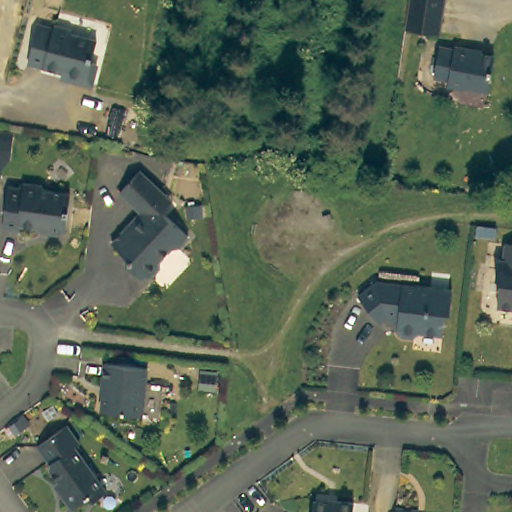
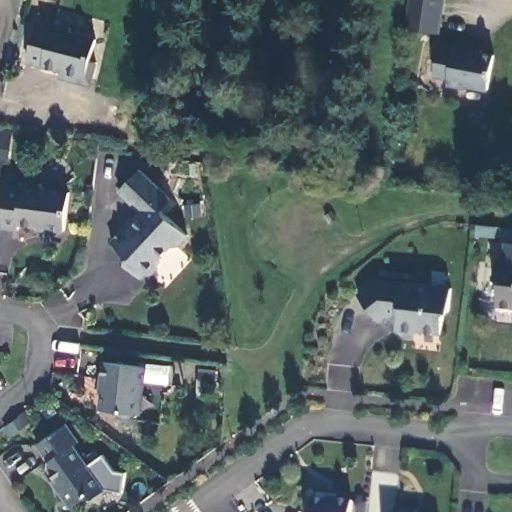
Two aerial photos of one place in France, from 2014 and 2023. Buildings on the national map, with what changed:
unchanged [(438,35),(405,31),(409,0),(444,0),(438,35)]
unchanged [(39,20),(54,26),(55,22),(71,27),(73,31),(97,38),(91,60),(97,62),(91,82),(69,77),(70,72),(28,59),(39,20)]
unchanged [(437,45),(451,48),(452,45),(479,50),(478,52),(492,55),(488,75),(485,89),(463,85),(462,87),(445,83),(446,77),(431,74),(432,67),(437,45)]
unchanged [(150,212),(182,241),(173,252),(165,252),(154,262),(156,270),(147,281),(139,279),(136,281),(124,270),(123,262),(108,247),(123,230),(131,228),(139,220),(114,198),(135,177),(161,201),(150,212)]
unchanged [(54,235),(42,233),(35,228),(14,226),(13,232),(0,230),(0,198),(1,189),(17,190),(17,185),(33,187),(38,192),(62,195),(59,230),(54,235)]
unchanged [(501,285),(496,277),(498,258),(504,258),(506,242),(512,242),(512,308),(498,307),(501,285)]
unchanged [(441,317),(440,332),(418,329),(413,334),(400,332),(395,327),(396,323),(391,317),(383,317),(378,321),(357,293),(374,278),(451,287),(448,311),(441,317)]
unchanged [(99,381),(97,381),(100,357),(142,362),(137,410),(96,406),(99,381)]
unchanged [(70,447),(101,492),(90,500),(80,500),(69,508),(58,493),(56,484),(47,472),(45,462),(33,445),(61,425),(74,443),(70,447)]
unchanged [(309,512),(310,501),(334,503),(334,501),(350,502),(349,512),(309,512)]
unchanged [(417,512),(395,512),(395,510),(417,512)]

